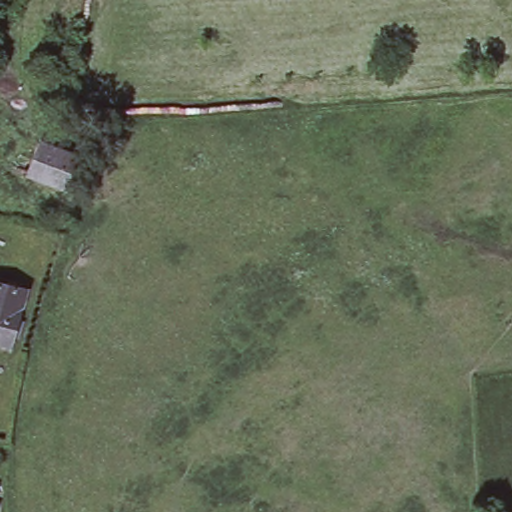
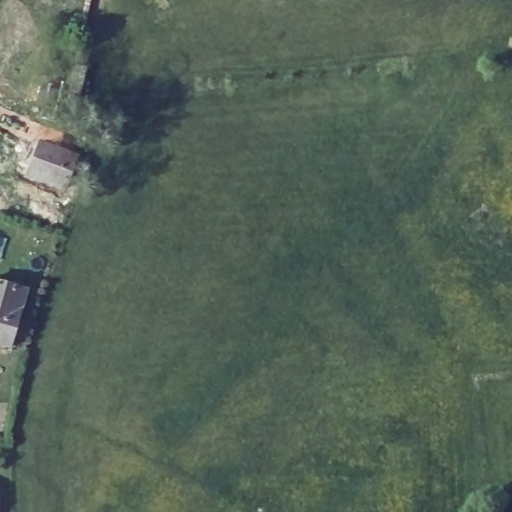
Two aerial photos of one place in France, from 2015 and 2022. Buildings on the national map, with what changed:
unchanged [(64,186),(33,175),(25,172),(37,139),(44,141),(76,155),(64,186)]
unchanged [(26,287),(9,345),(0,343),(0,280),(26,287)]

